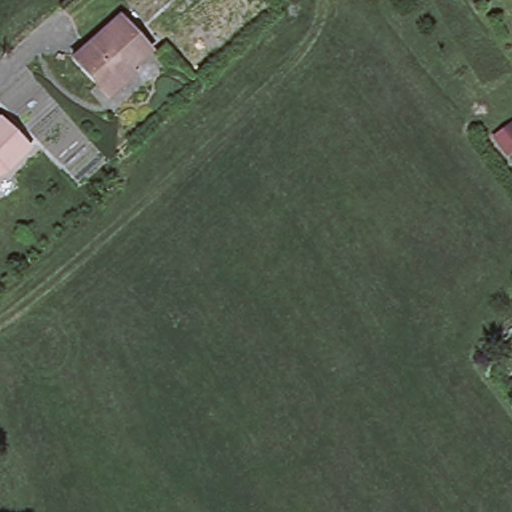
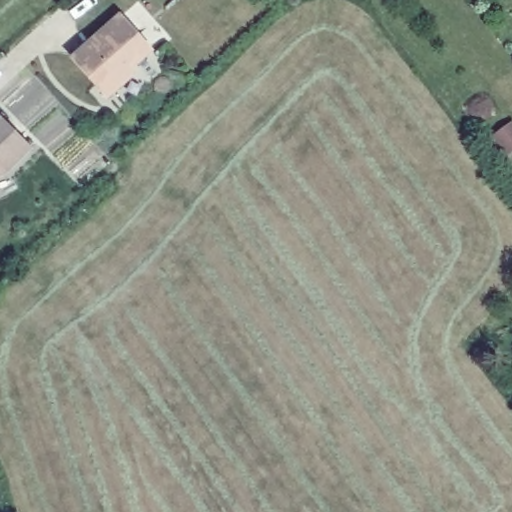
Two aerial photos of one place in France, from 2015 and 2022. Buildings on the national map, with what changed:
unchanged [(149,50),(134,63),(130,59),(122,65),(130,75),(103,98),(68,58),(117,15),(149,50)]
unchanged [(30,147),(3,174),(0,176),(0,121),(1,120),(30,147)]

